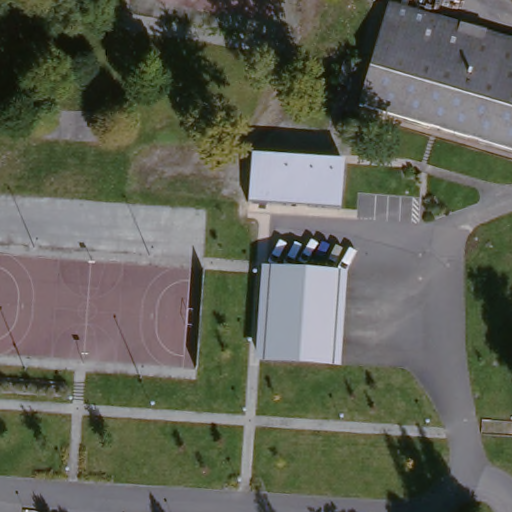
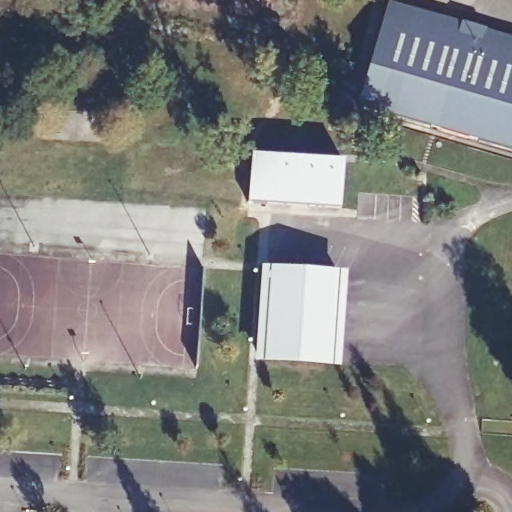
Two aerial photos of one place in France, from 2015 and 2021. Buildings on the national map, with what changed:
unchanged [(385,9),(512,46),(512,155),(356,111),(385,9)]
unchanged [(251,153),(344,162),(341,210),(249,200),(251,153)]
unchanged [(264,271),(349,274),(344,367),(258,359),(264,271)]

